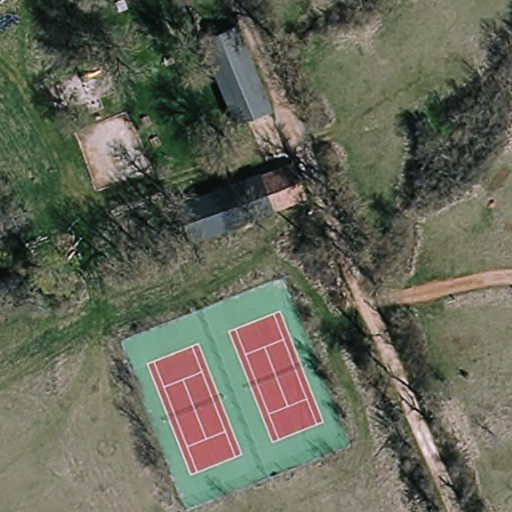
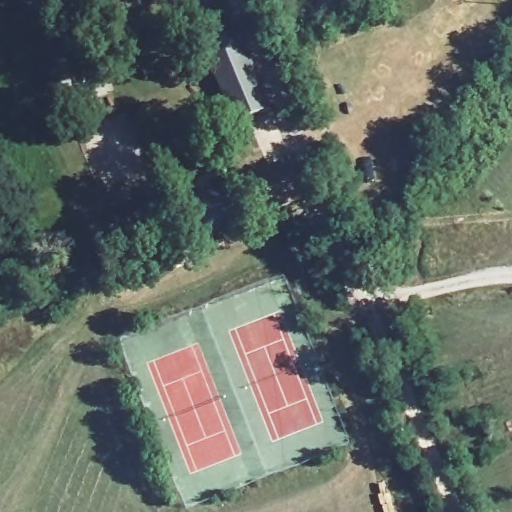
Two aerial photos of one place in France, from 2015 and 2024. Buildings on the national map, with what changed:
unchanged [(269,108),(223,124),(197,41),(231,27),(249,60),(269,108)]
unchanged [(191,240),(174,200),(291,157),(309,199),(191,240)]

